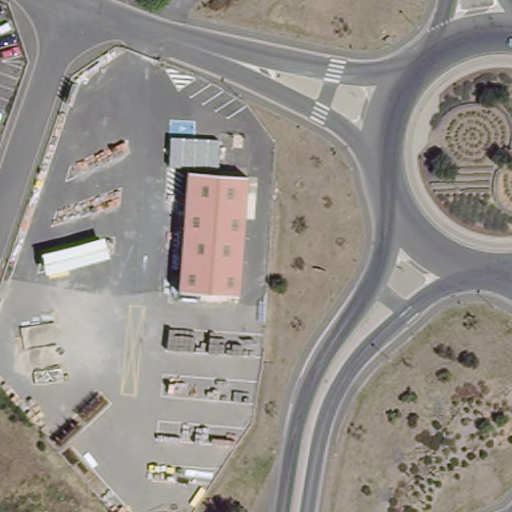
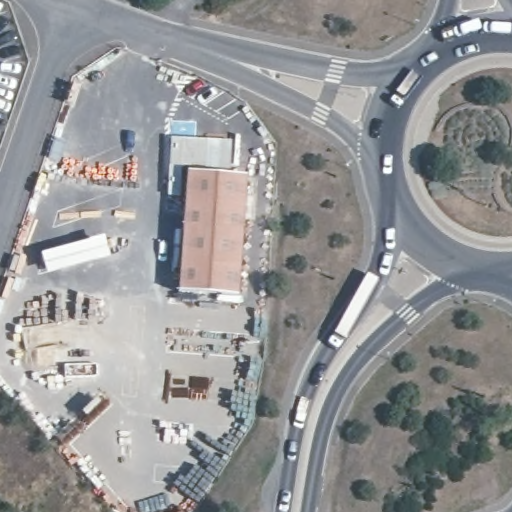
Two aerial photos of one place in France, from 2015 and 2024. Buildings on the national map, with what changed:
unchanged [(244,172),(238,292),(184,289),(190,168),(244,172)]

